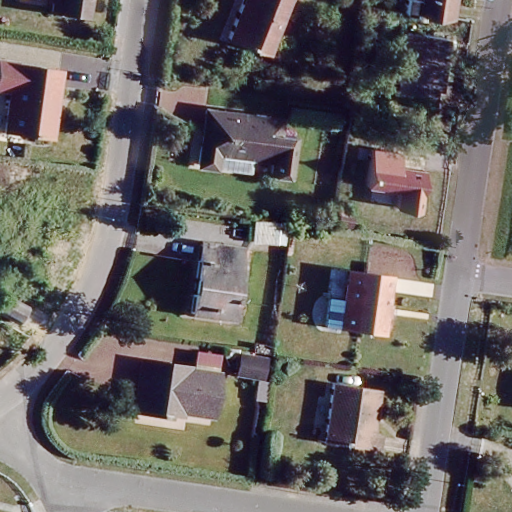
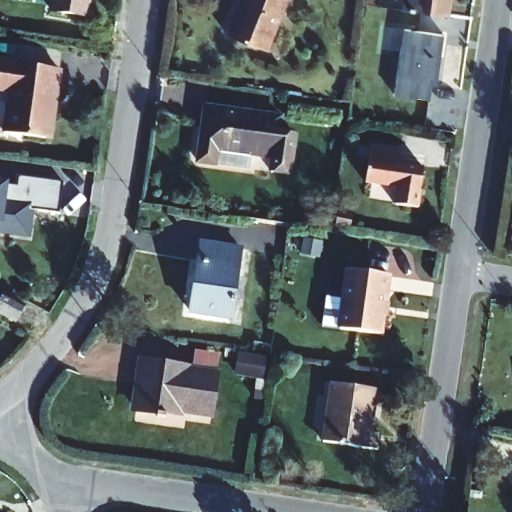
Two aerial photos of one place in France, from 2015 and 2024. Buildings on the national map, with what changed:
unchanged [(54,14),(55,0),(90,0),(87,19),(54,14)]
unchanged [(220,40),(235,0),(282,0),(260,56),(220,40)]
unchanged [(288,0),(289,0),(289,1),(288,0)]
unchanged [(409,10),(410,0),(454,0),(452,16),(409,10)]
unchanged [(444,36),(437,86),(432,85),(430,99),(395,94),(405,30),(444,36)]
unchanged [(60,106),(55,106),(52,136),(10,132),(15,90),(0,88),(0,65),(0,60),(65,68),(60,106)]
unchanged [(270,114),(274,115),(272,127),(288,129),(282,170),(265,168),(267,153),(265,152),(210,144),(207,160),(191,158),(199,104),(270,114)]
unchanged [(400,157),(397,171),(422,174),(417,213),(393,210),(395,193),(365,188),(370,153),(400,157)]
new [(32,209),(29,234),(0,229),(0,221),(0,219),(0,218),(0,182),(17,185),(19,175),(65,181),(60,213),(32,209)]
unchanged [(242,250),(230,318),(189,312),(201,242),(242,250)]
unchanged [(329,297),(345,300),(350,270),(390,276),(381,336),(341,330),(324,327),(329,297)]
unchanged [(17,321),(0,313),(0,301),(2,296),(23,305),(17,321)]
unchanged [(189,368),(189,371),(217,376),(210,417),(167,411),(166,415),(156,414),(156,409),(138,406),(144,363),(189,368)]
unchanged [(376,390),(370,433),(380,434),(377,450),(322,441),(331,382),(376,390)]

